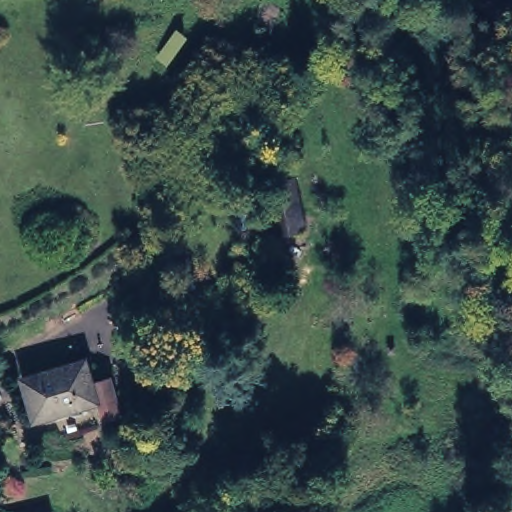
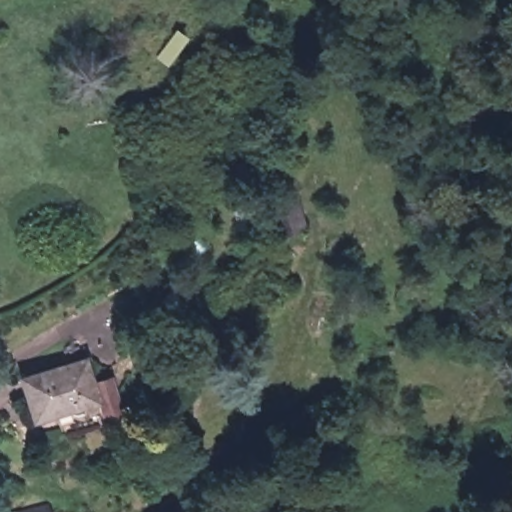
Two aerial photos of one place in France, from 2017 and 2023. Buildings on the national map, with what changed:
unchanged [(272,177),(296,175),(304,226),(278,232),(272,177)]
unchanged [(90,356),(100,399),(36,416),(27,373),(90,356)]
unchanged [(45,499),(48,512),(0,512),(0,511),(45,499)]

